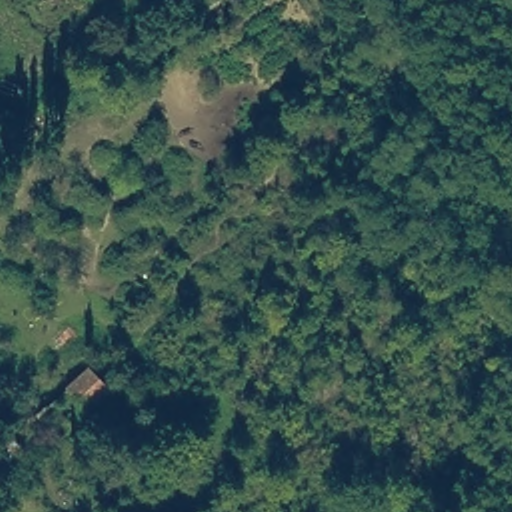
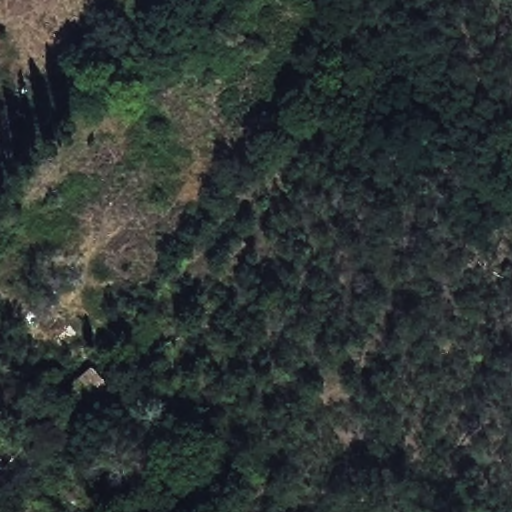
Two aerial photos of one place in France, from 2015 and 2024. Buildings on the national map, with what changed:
unchanged [(91,360),(116,389),(89,411),(66,385),(91,360)]

